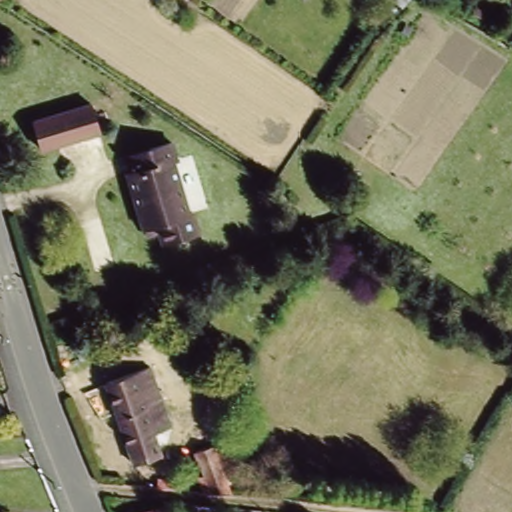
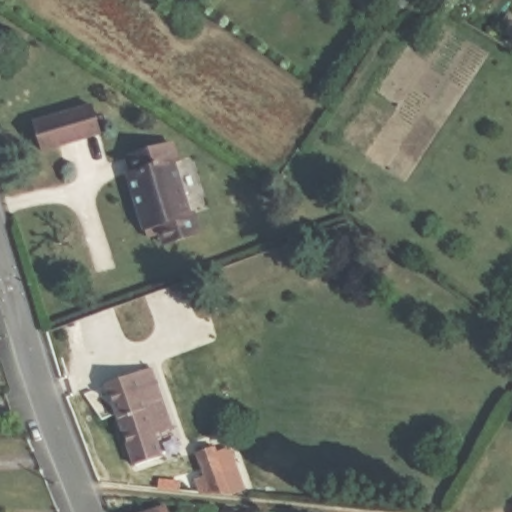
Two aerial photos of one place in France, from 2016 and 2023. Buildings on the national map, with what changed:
unchanged [(37,151),(29,117),(94,99),(106,135),(37,151)]
unchanged [(153,235),(150,227),(134,174),(138,172),(133,155),(154,148),(176,141),(182,159),(178,160),(195,212),(198,211),(204,230),(176,239),(169,242),(165,231),(153,235)]
unchanged [(171,423),(154,429),(161,450),(136,458),(107,379),(150,363),(171,423)]
unchanged [(197,477),(205,475),(198,451),(219,445),(221,452),(234,447),(242,472),(229,477),(234,495),(213,492),(212,492),(210,492),(201,492),(197,477)]
unchanged [(161,478),(187,481),(186,490),(160,487),(161,478)]
unchanged [(130,512),(130,510),(166,496),(172,512),(130,512)]
unchanged [(209,506),(208,512),(183,512),(184,504),(185,504),(209,506)]

